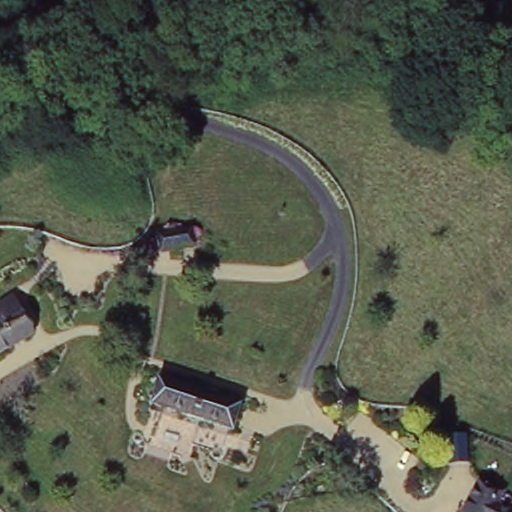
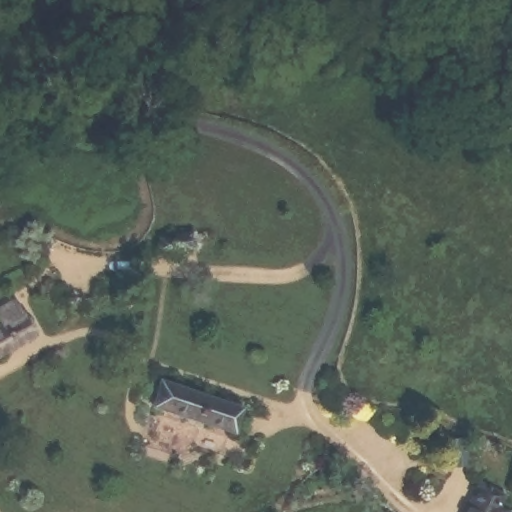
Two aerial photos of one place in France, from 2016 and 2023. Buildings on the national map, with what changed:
unchanged [(158,258),(154,239),(181,236),(184,253),(158,258)]
unchanged [(16,309),(29,332),(0,350),(0,291),(5,288),(16,309)]
unchanged [(241,403),(234,428),(153,401),(160,376),(241,403)]
unchanged [(512,509),(512,512),(458,512),(472,474),(502,487),(496,502),(512,509)]

